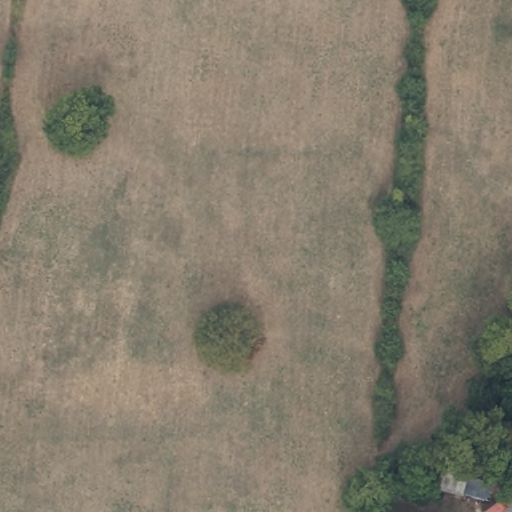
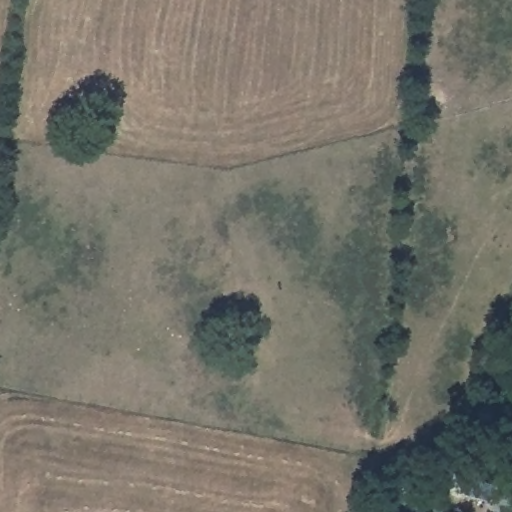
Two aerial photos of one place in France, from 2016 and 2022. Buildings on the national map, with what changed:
unchanged [(456,495),(454,503),(427,497),(433,473),(447,477),(460,480),(482,485),(479,501),(456,495)]

